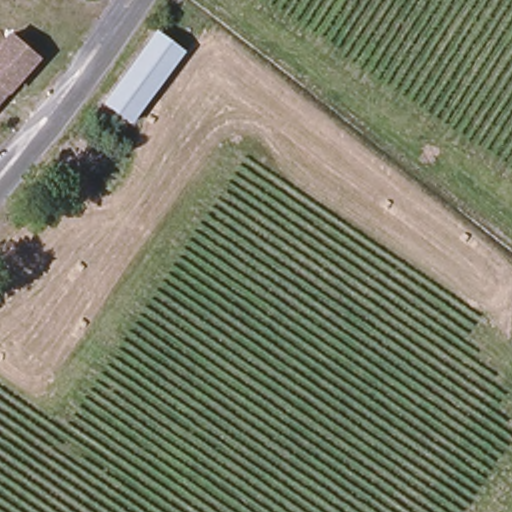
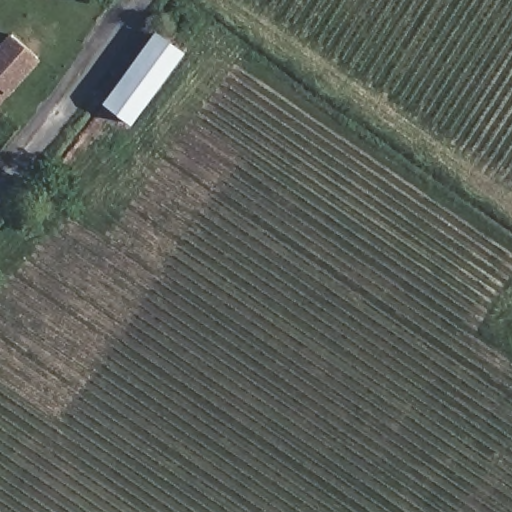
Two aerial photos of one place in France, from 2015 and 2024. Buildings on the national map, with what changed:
unchanged [(43,0),(44,0),(44,1),(43,0)]
unchanged [(103,111),(155,41),(180,59),(129,131),(103,111)]
unchanged [(32,68),(0,105),(0,51),(6,45),(32,68)]

